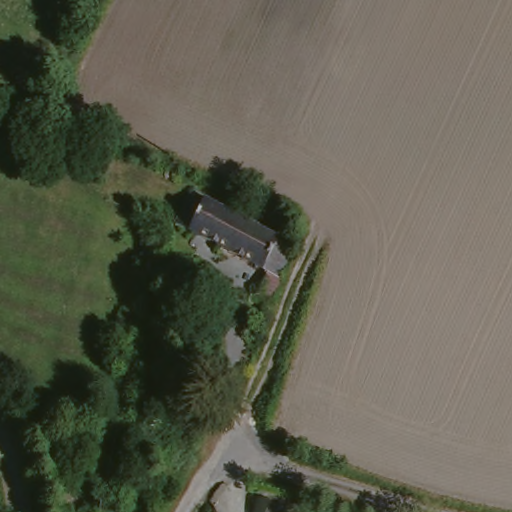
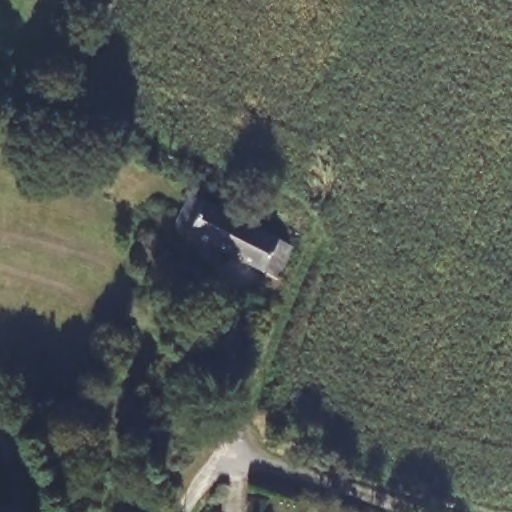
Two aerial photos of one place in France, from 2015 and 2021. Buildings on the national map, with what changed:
unchanged [(275,276),(279,278),(264,307),(249,300),(264,273),(169,223),(187,194),(290,248),(275,276)]

